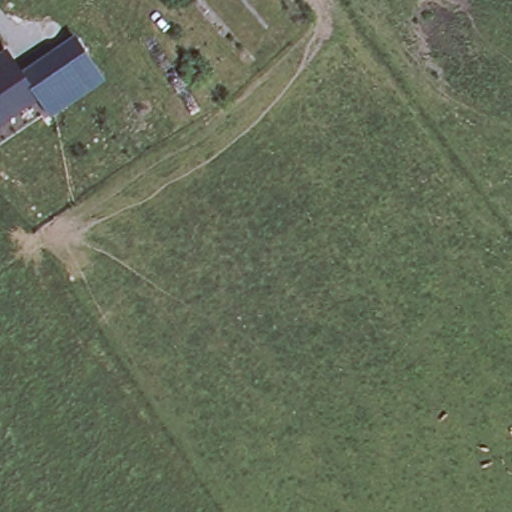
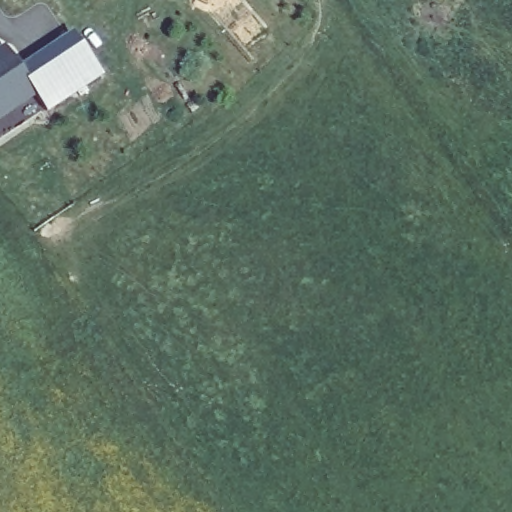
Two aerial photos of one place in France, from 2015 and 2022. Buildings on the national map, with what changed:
unchanged [(6,47),(20,66),(74,32),(103,75),(49,111),(37,95),(0,121),(0,51),(6,47)]

